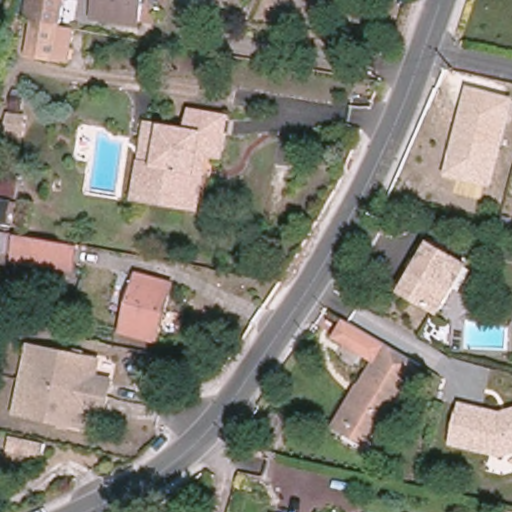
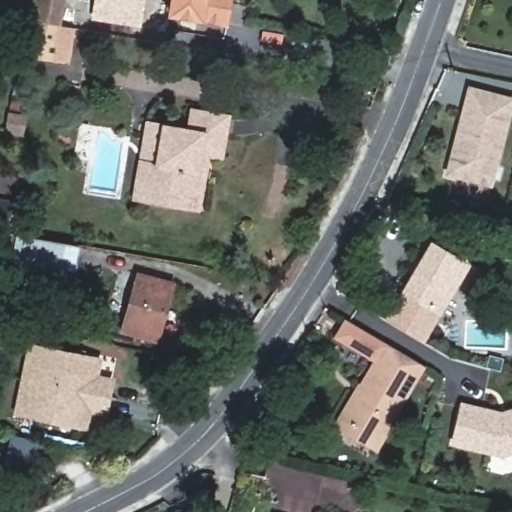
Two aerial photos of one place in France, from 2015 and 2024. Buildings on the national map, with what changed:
unchanged [(36,21),(22,19),(26,0),(62,0),(57,24),(68,26),(75,28),(69,61),(51,59),(30,54),(36,21)]
unchanged [(95,17),(98,0),(144,0),(140,24),(95,17)]
new [(171,0),(232,0),(227,27),(168,18),(171,0)]
unchanged [(467,86),(512,98),(512,104),(490,187),(444,175),(467,86)]
unchanged [(193,110),(230,116),(223,157),(202,154),(199,173),(206,174),(200,209),(136,198),(142,162),(159,164),(166,126),(190,130),(193,110)]
demolished [(512,191),(512,194),(511,194),(512,191)]
unchanged [(36,265),(10,261),(15,234),(18,234),(75,244),(71,269),(37,264),(36,265)]
unchanged [(441,310),(406,289),(417,272),(412,269),(419,259),(423,261),(434,243),(468,264),(441,310)]
unchanged [(140,274),(175,284),(159,340),(124,331),(140,274)]
unchanged [(333,339),(344,321),(380,349),(415,369),(371,444),(336,423),(372,363),(333,339)]
unchanged [(31,346),(101,359),(99,377),(113,380),(107,414),(91,411),(88,428),(18,414),(31,346)]
unchanged [(512,416),(512,455),(500,459),(451,446),(461,409),(499,419),(512,416)]
unchanged [(13,437),(47,444),(44,458),(10,451),(13,437)]
new [(210,490),(211,490),(205,512),(189,512),(210,490)]

